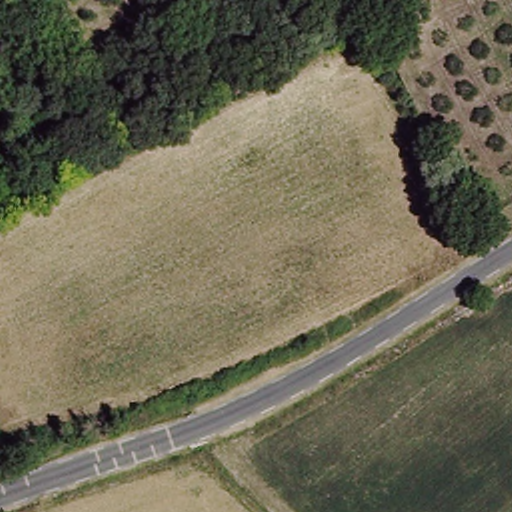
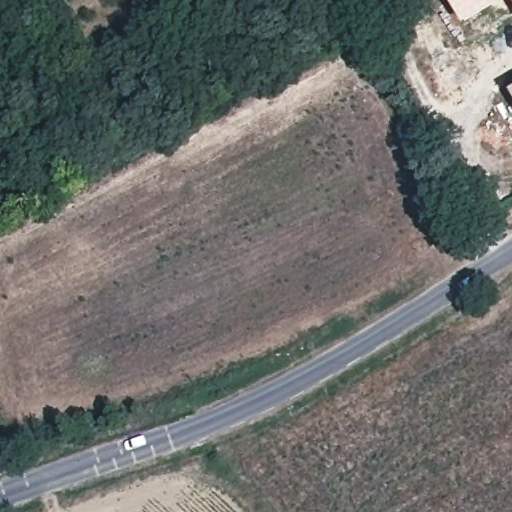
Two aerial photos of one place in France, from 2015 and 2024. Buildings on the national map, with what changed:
new [(466,20),(454,0),(502,0),(466,20)]

